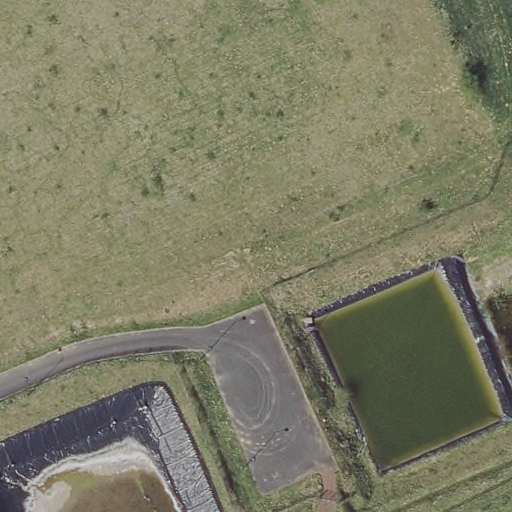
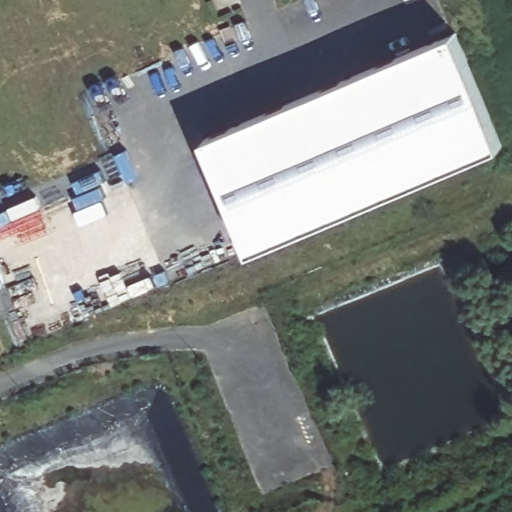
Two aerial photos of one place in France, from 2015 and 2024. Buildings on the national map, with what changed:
new [(474,38),(512,131),(512,167),(256,264),(209,151),(474,38)]

